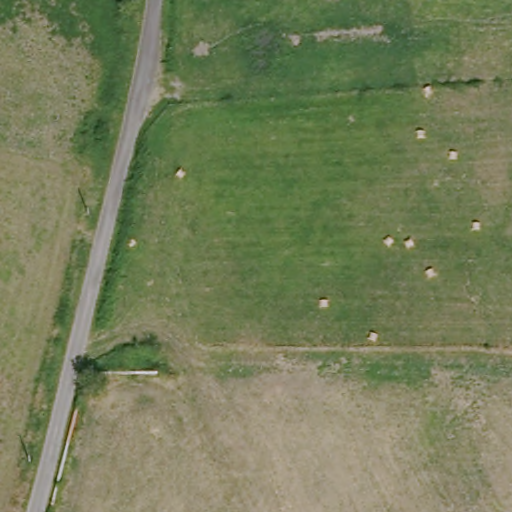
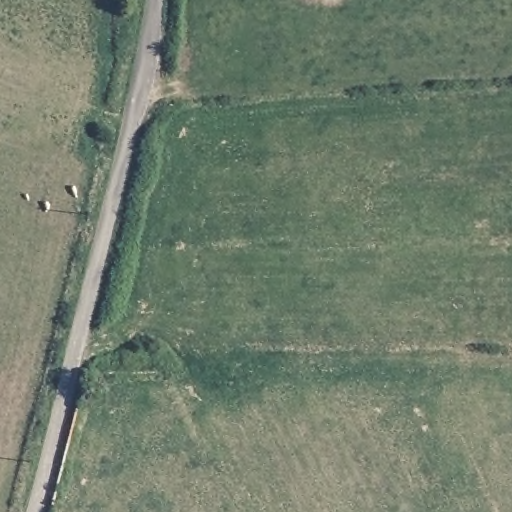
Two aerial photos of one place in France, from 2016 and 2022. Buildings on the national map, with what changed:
[]

